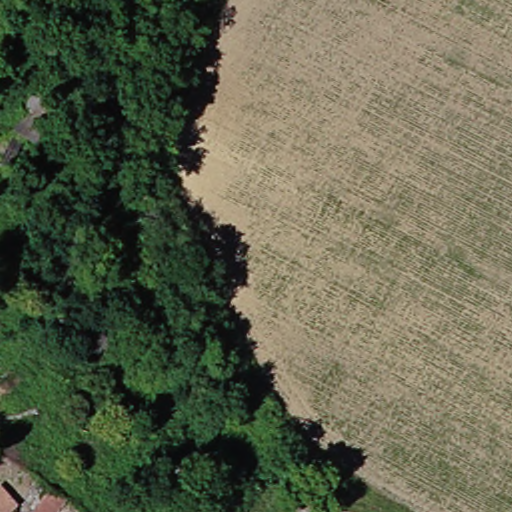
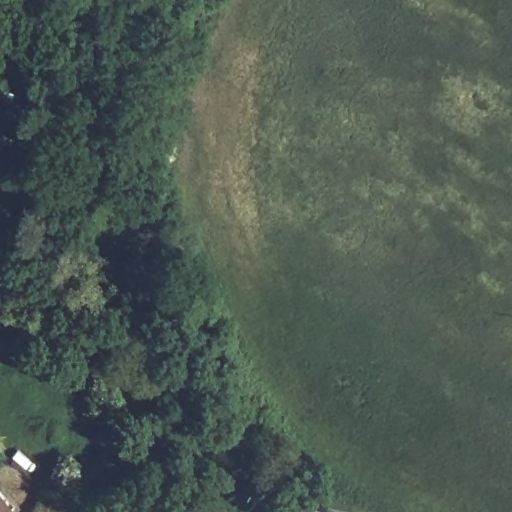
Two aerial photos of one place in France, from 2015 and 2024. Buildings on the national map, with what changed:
unchanged [(9,486),(28,506),(22,512),(0,512),(0,494),(9,486)]
unchanged [(73,502),(65,512),(38,512),(57,489),(73,502)]

